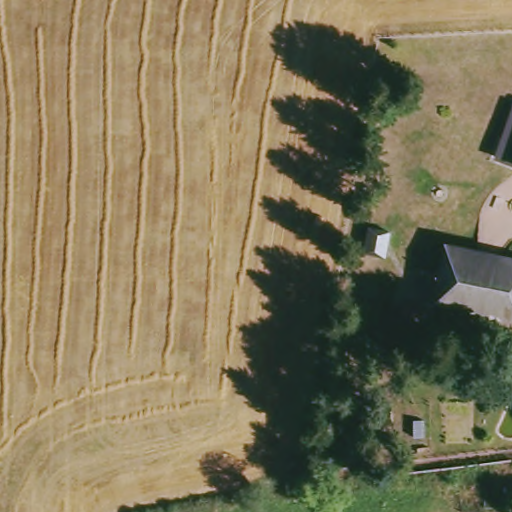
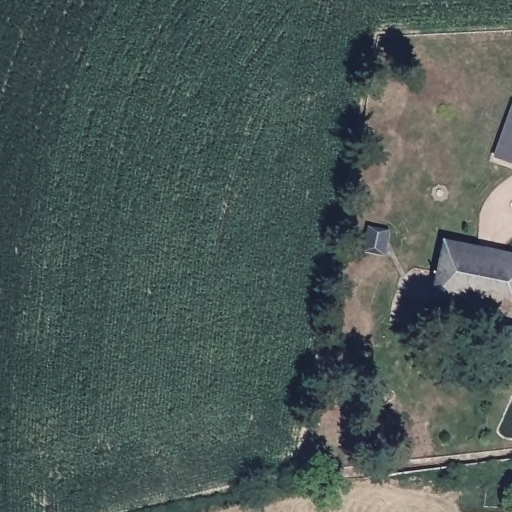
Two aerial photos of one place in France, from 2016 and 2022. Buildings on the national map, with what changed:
unchanged [(501,157),(512,125),(512,161),(501,157)]
unchanged [(512,261),(512,321),(436,302),(449,245),(512,261)]

